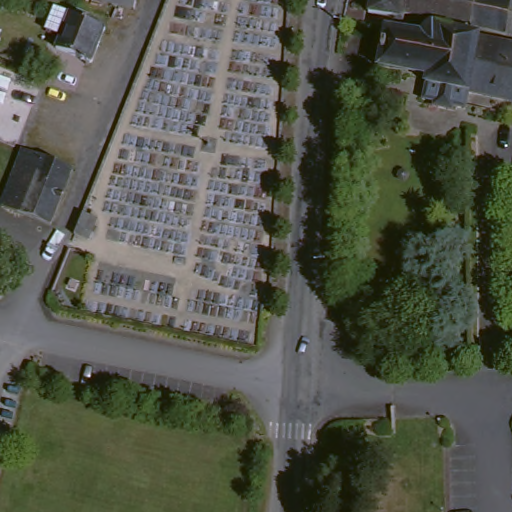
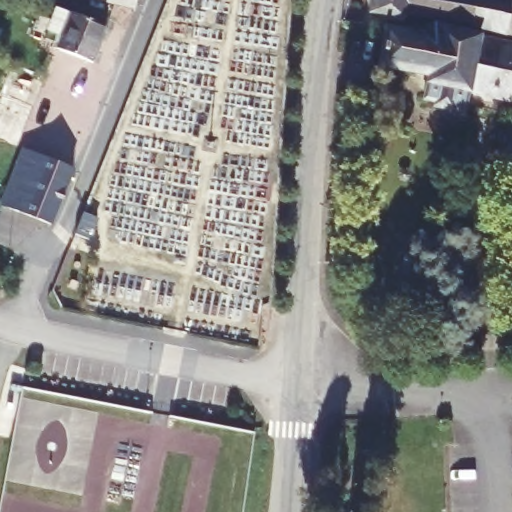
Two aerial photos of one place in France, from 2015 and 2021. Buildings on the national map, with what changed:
unchanged [(60,7),(31,0),(62,0),(60,7)]
unchanged [(140,3),(127,0),(140,0),(140,3)]
unchanged [(507,3),(503,33),(472,27),(470,22),(406,16),(403,21),(369,16),(371,0),(508,0),(507,3)]
unchanged [(507,3),(508,0),(512,0),(512,34),(503,33),(507,3)]
unchanged [(56,48),(69,14),(104,28),(90,62),(56,48)]
unchanged [(464,95),(461,111),(449,109),(448,114),(430,110),(431,106),(419,104),(422,87),(424,80),(376,71),(384,30),(405,34),(421,37),(423,33),(427,30),(430,28),(436,29),(456,33),(459,33),(475,37),(474,40),(512,47),(512,104),(508,104),(464,95)]
unchanged [(50,223),(27,214),(0,202),(17,161),(22,148),(73,168),(69,178),(50,223)]
unchanged [(83,206),(96,211),(88,231),(75,225),(83,206)]

